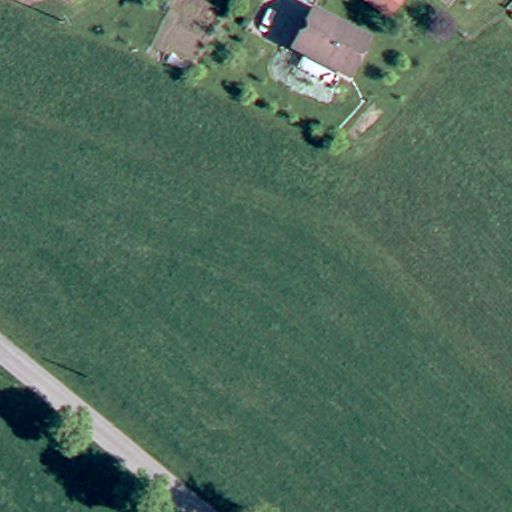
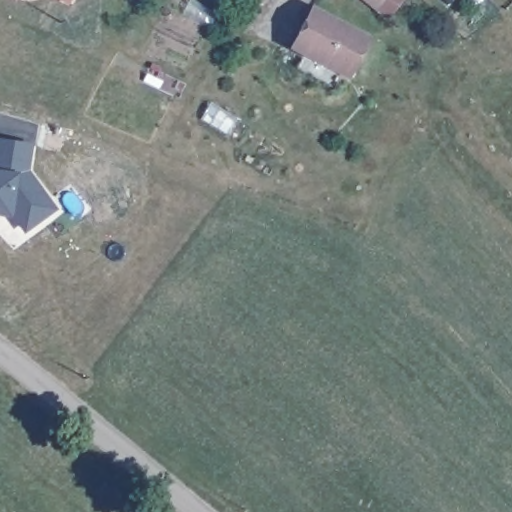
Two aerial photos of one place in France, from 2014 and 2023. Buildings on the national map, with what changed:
unchanged [(70,0),(75,0),(74,2),(70,0)]
unchanged [(355,0),(373,0),(366,8),(355,0)]
unchanged [(368,39),(349,75),(298,48),(316,13),(368,39)]
new [(0,141),(29,145),(24,178),(31,179),(47,201),(53,209),(41,217),(25,229),(9,207),(8,215),(0,214),(0,141)]

